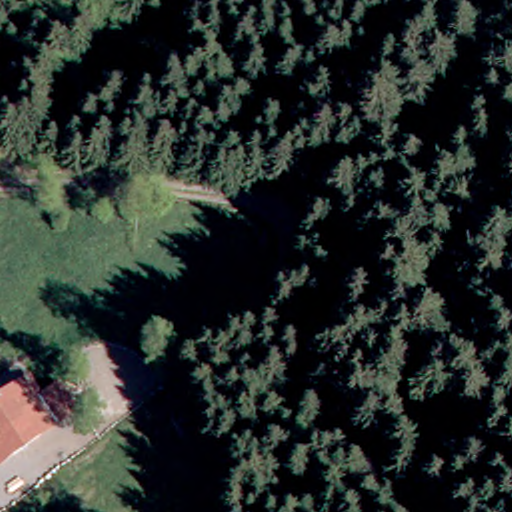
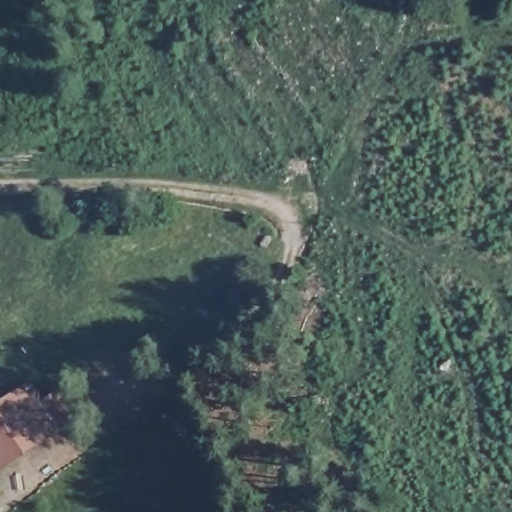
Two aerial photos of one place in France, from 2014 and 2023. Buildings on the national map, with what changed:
unchanged [(0,469),(0,406),(26,387),(57,430),(0,469)]

